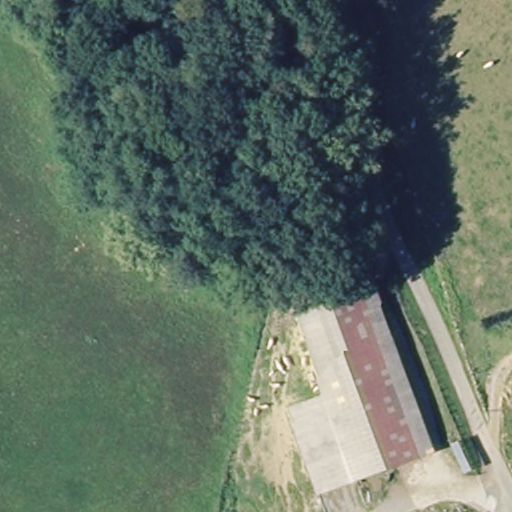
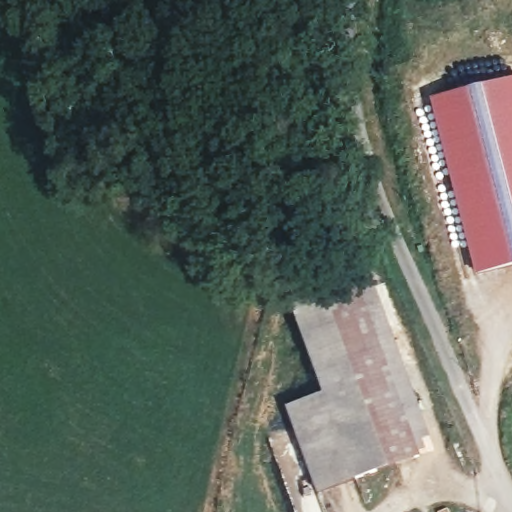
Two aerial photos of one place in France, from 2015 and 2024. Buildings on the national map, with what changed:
new [(477,277),(430,102),(512,79),(512,268),(477,277)]
unchanged [(290,408),(329,393),(295,303),(362,281),(427,452),(321,492),(290,408)]

